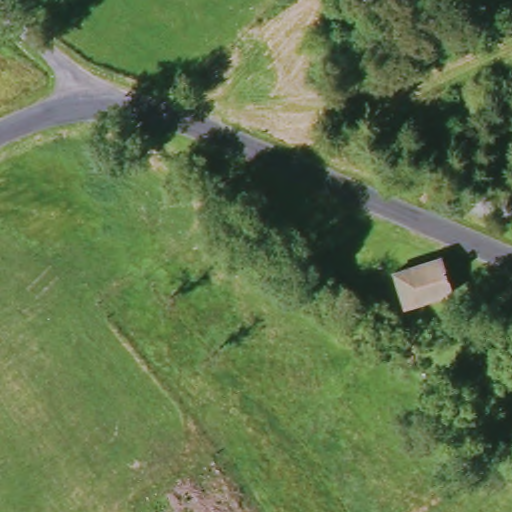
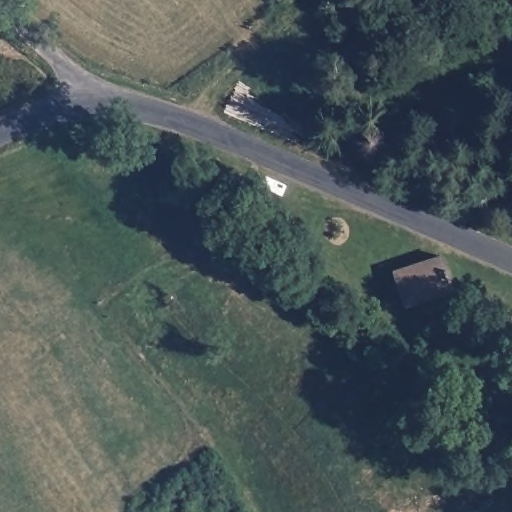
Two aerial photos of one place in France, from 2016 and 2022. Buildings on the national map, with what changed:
unchanged [(449,292),(402,309),(388,275),(438,258),(449,292)]

